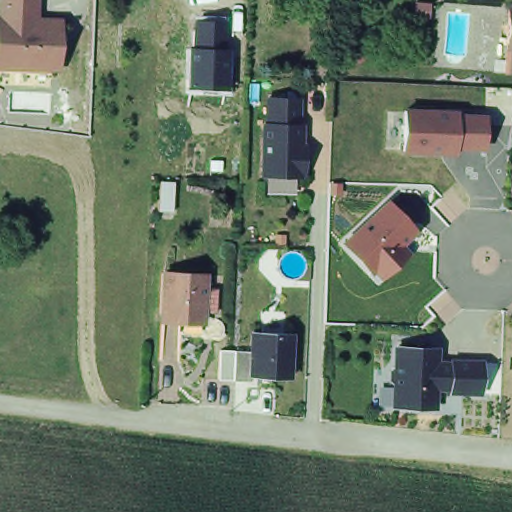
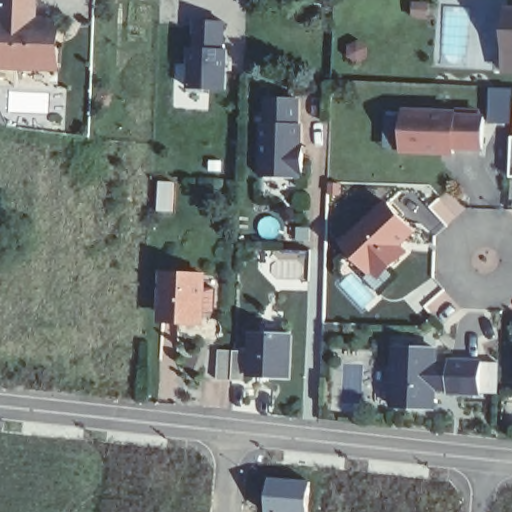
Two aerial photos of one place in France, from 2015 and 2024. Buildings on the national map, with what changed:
unchanged [(50,65),(0,62),(0,10),(0,0),(34,0),(34,16),(52,17),(58,17),(56,65),(50,65)]
unchanged [(512,10),(512,53),(504,52),(507,10),(512,10)]
unchanged [(231,91),(188,90),(188,46),(191,46),(193,19),(226,19),(226,49),(231,49),(231,91)]
unchanged [(512,71),(503,70),(504,52),(512,53),(512,71)]
unchanged [(260,120),(264,121),(263,97),(298,95),(299,121),(301,121),(301,146),(304,146),(304,175),(260,175),(260,120)]
unchanged [(483,149),(454,148),(455,153),(401,151),(401,108),(457,109),(456,114),(483,114),(483,149)]
new [(512,145),(512,177),(510,176),(512,145)]
unchanged [(412,230),(399,244),(404,252),(379,273),(374,265),(371,270),(344,240),(386,200),(412,230)]
unchanged [(207,311),(196,310),(196,316),(154,314),(156,271),(198,274),(198,286),(209,286),(207,311)]
unchanged [(292,375),(247,375),(249,332),(292,332),(292,375)]
unchanged [(439,346),(439,358),(481,360),(481,394),(447,393),(447,390),(436,390),(435,407),(391,403),(394,344),(439,346)]
unchanged [(247,375),(246,381),(216,380),(218,350),(248,352),(247,375)]
new [(268,475),(310,480),(306,512),(263,512),(268,475)]

